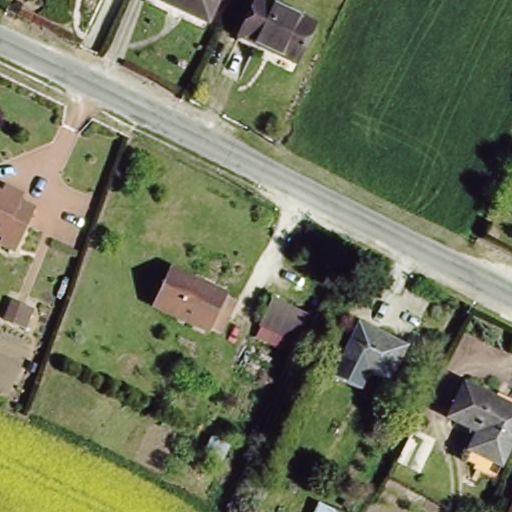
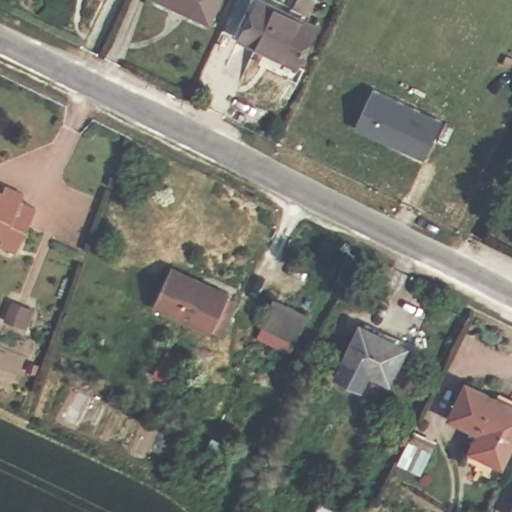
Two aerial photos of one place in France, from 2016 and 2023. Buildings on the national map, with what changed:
unchanged [(169,13),(141,0),(215,0),(207,16),(175,1),(169,13)]
unchanged [(239,30),(254,0),(277,0),(315,18),(295,58),(239,30)]
new [(425,159),(355,128),(372,88),(442,119),(425,159)]
unchanged [(22,191),(19,197),(35,204),(19,246),(0,239),(0,186),(1,183),(22,191)]
unchanged [(235,301),(220,331),(210,327),(209,331),(154,304),(174,265),(228,291),(225,296),(235,301)]
unchanged [(297,347),(262,330),(275,302),(310,319),(297,347)]
unchanged [(360,320),(405,341),(390,374),(367,363),(359,381),(336,370),(360,320)]
unchanged [(500,467),(465,450),(472,433),(447,421),(464,387),(512,411),(512,443),(500,467)]
unchanged [(227,469),(205,459),(214,442),(235,452),(227,469)]
unchanged [(317,507),(325,512),(314,512),(317,507)]
unchanged [(252,508),(259,512),(251,512),(252,508)]

